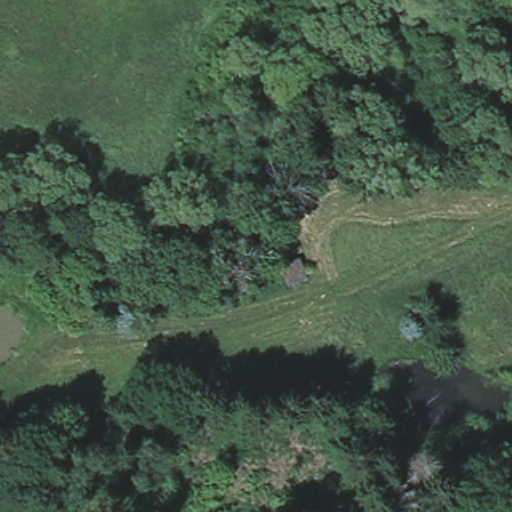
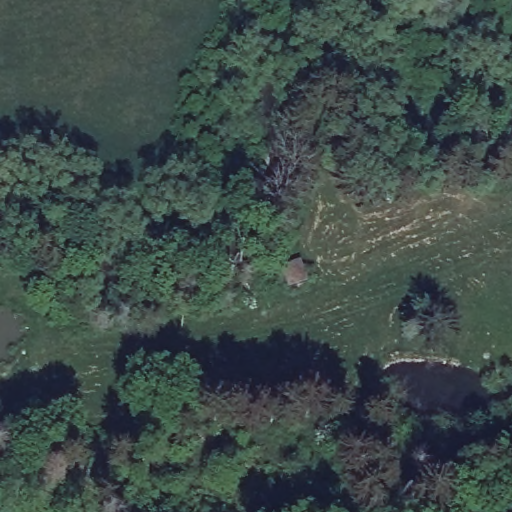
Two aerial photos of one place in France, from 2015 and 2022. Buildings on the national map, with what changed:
unchanged [(268,264),(297,254),(306,283),(280,289),(268,264)]

